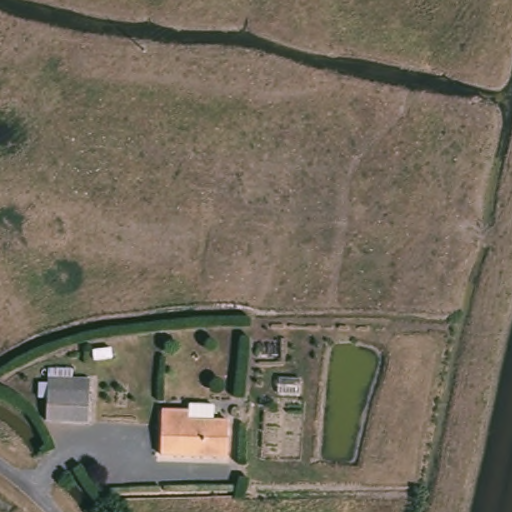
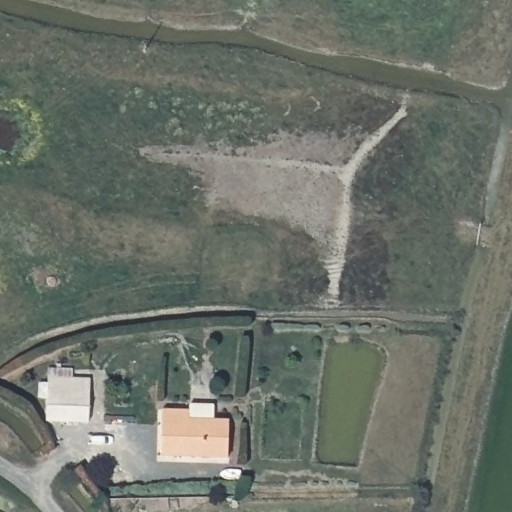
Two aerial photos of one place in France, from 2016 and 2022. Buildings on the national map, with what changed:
unchanged [(49,424),(51,389),(52,381),(94,384),(93,393),(90,427),(49,424)]
unchanged [(230,463),(165,459),(167,407),(194,409),(194,403),(219,404),(217,419),(233,421),(230,463)]

